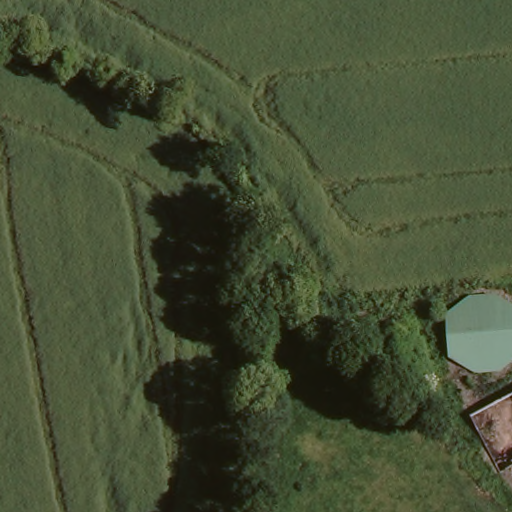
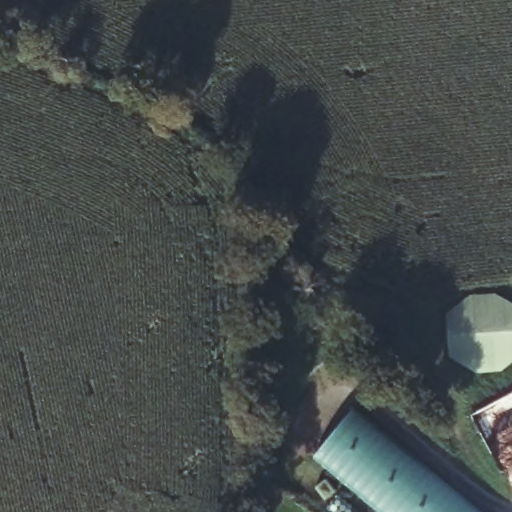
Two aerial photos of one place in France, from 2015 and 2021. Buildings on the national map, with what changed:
new [(468,296),(496,293),(512,302),(512,363),(502,371),(476,373),(449,355),(447,314),(468,296)]
new [(315,456),(355,408),(479,512),(381,512),(315,456)]

